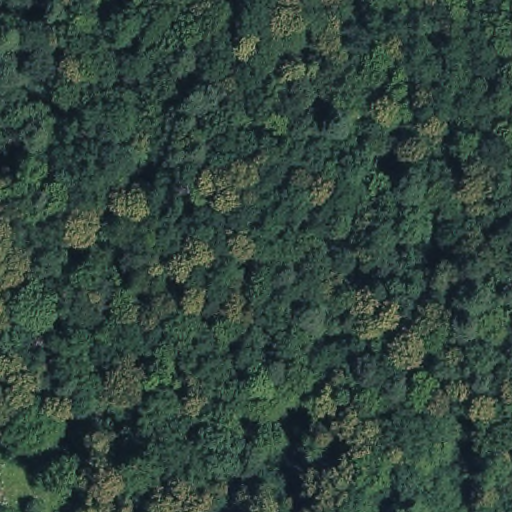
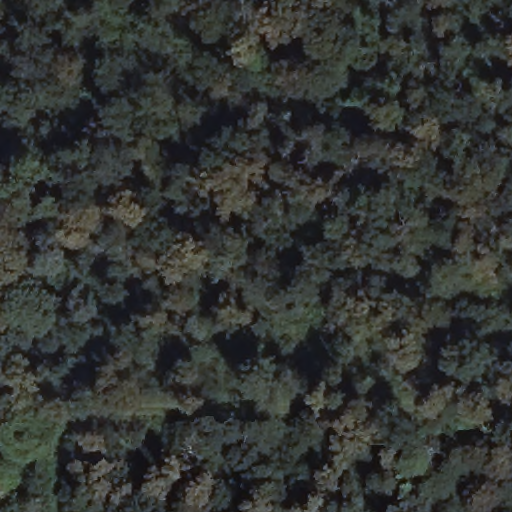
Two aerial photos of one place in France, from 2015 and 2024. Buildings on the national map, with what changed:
[]

